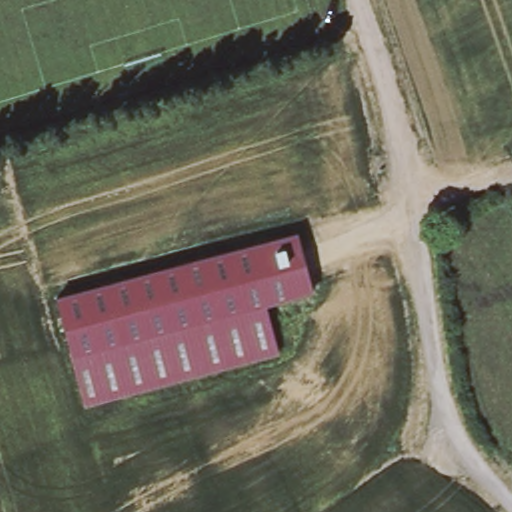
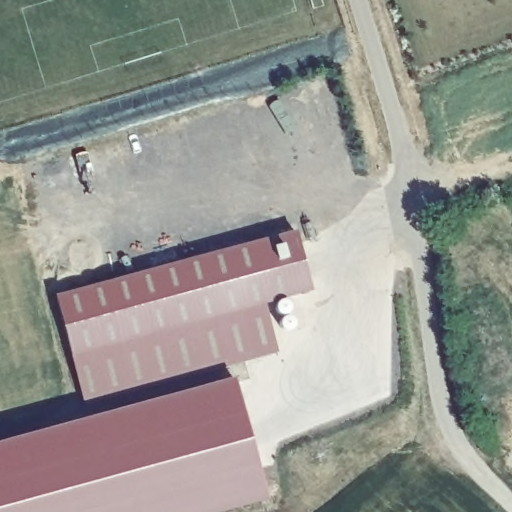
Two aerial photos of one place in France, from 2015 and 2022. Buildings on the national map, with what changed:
unchanged [(297,233),(312,291),(263,303),(276,352),(85,401),(57,295),(297,233)]
new [(224,512),(0,512),(0,442),(233,379),(267,501),(224,512)]

